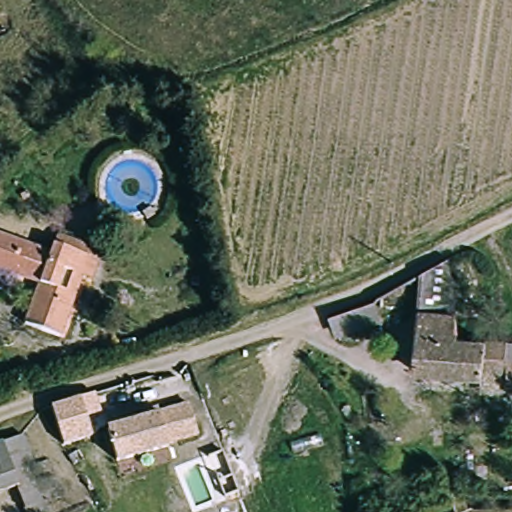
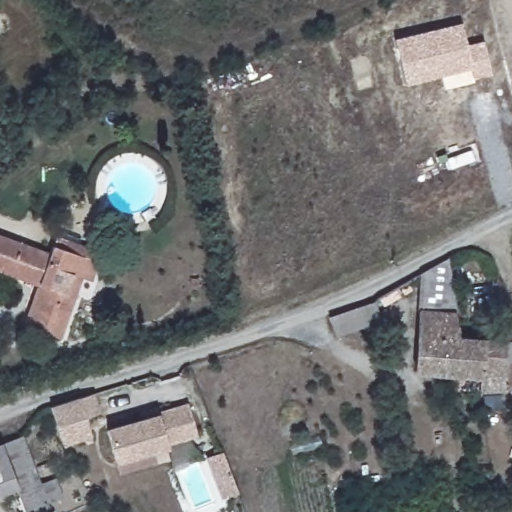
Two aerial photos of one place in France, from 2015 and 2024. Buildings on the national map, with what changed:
new [(405,86),(394,40),(462,22),(467,43),(484,39),(491,73),(473,77),(471,69),(405,86)]
unchanged [(102,276),(88,271),(66,331),(31,318),(43,282),(0,269),(0,239),(54,257),(59,242),(65,228),(100,240),(94,253),(93,258),(106,263),(102,276)]
unchanged [(413,373),(417,315),(436,314),(423,268),(441,258),(454,343),(443,343),(441,375),(413,373)]
unchanged [(337,334),(330,316),(378,300),(376,323),(337,334)]
unchanged [(503,346),(503,364),(512,364),(512,395),(499,394),(499,379),(441,375),(443,343),(454,343),(503,346)]
unchanged [(50,406),(80,397),(96,392),(103,411),(88,417),(93,437),(63,446),(50,406)]
unchanged [(158,416),(190,409),(197,440),(168,448),(168,452),(115,465),(108,433),(158,420),(158,416)]
unchanged [(58,500),(34,509),(25,484),(8,492),(0,473),(0,442),(30,430),(58,500)]
unchanged [(0,496),(0,473),(8,492),(0,496)]

